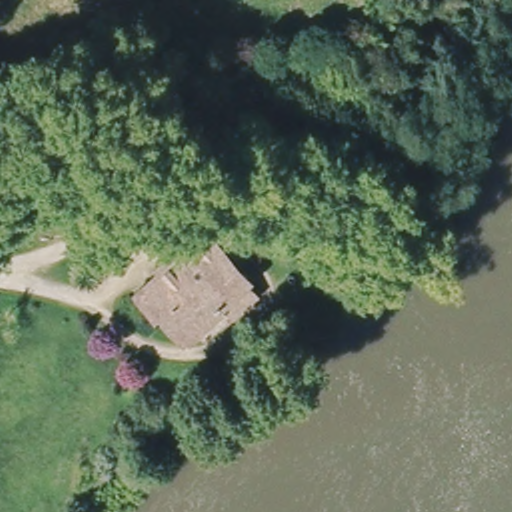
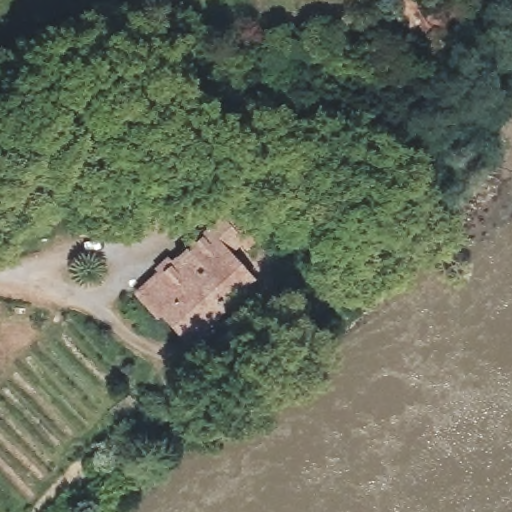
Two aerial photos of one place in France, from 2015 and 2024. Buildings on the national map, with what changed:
unchanged [(210,301),(173,335),(152,311),(147,314),(130,294),(190,235),(203,223),(226,247),(213,260),(232,279),(242,290),(220,311),(210,301)]

